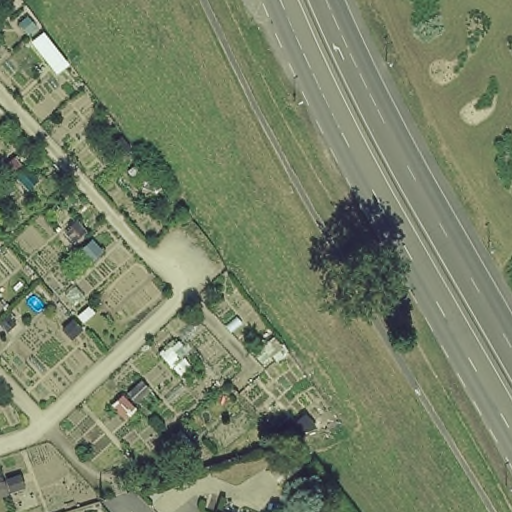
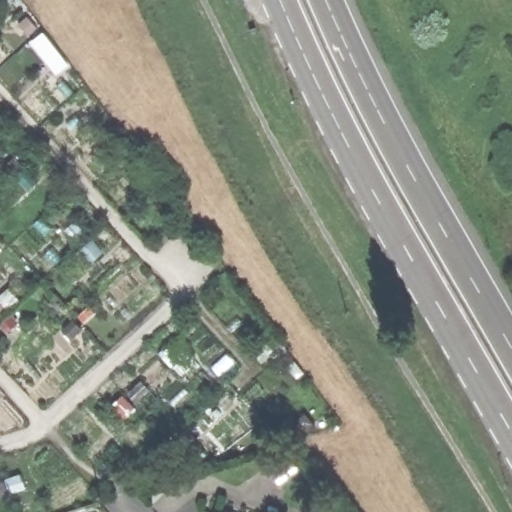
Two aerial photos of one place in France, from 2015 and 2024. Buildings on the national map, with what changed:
unchanged [(217,512),(214,512),(214,511),(217,512)]

